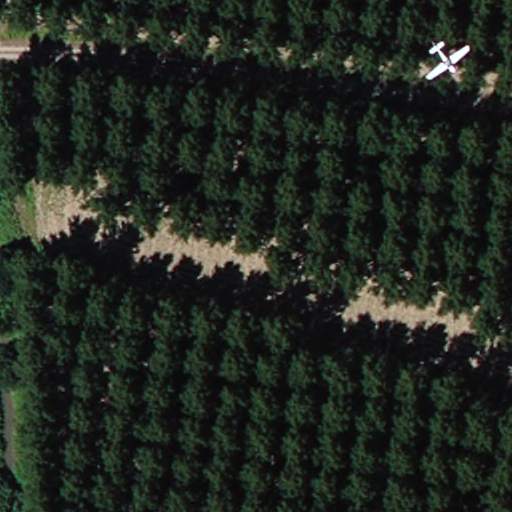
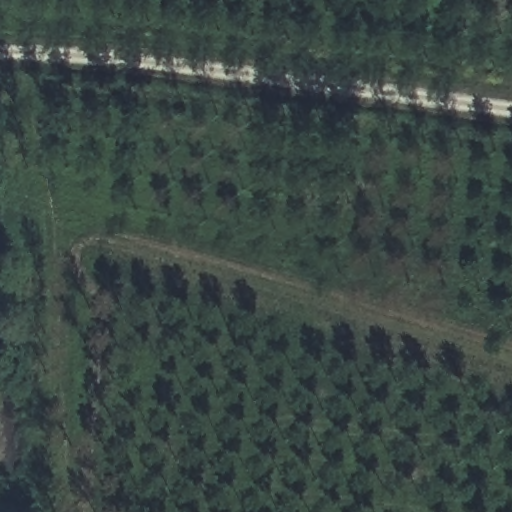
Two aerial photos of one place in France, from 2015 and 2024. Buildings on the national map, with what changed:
[]

